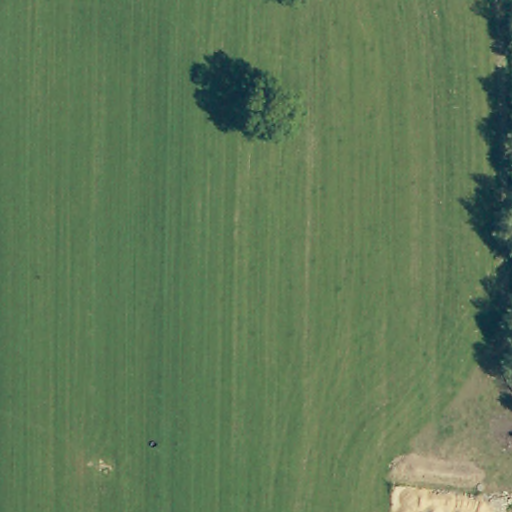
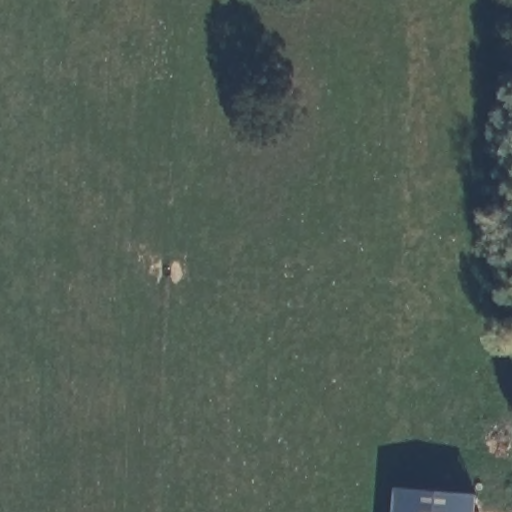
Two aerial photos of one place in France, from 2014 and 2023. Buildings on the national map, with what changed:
new [(475,495),(474,512),(393,512),(395,488),(475,495)]

